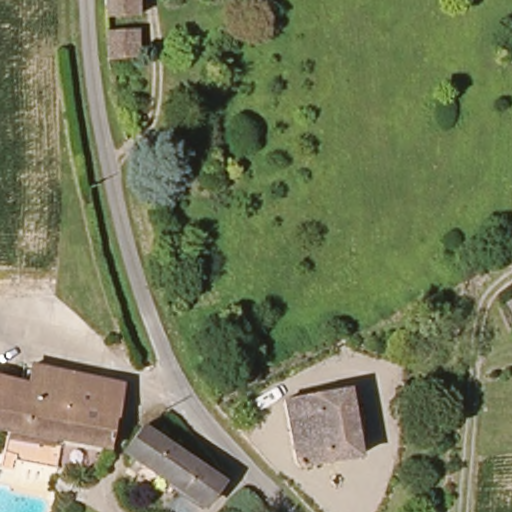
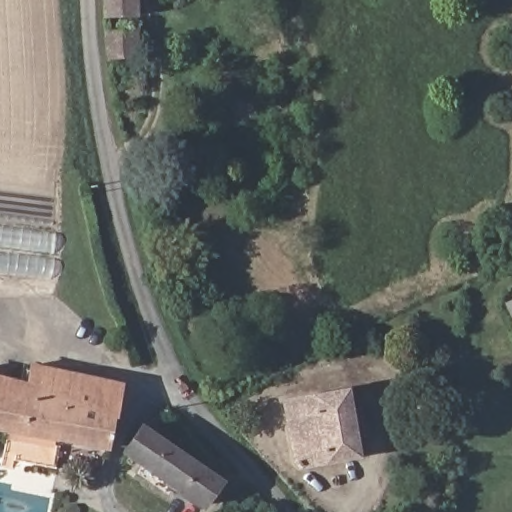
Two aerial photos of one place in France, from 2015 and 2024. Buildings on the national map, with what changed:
unchanged [(105,21),(103,0),(137,0),(138,19),(105,21)]
unchanged [(135,34),(136,60),(108,61),(106,35),(135,34)]
new [(0,273),(0,226),(56,234),(51,280),(0,273)]
unchanged [(506,305),(512,303),(512,318),(506,305)]
unchanged [(56,365),(125,378),(112,447),(64,439),(72,388),(30,379),(32,357),(56,365)]
unchanged [(64,439),(0,428),(0,372),(30,379),(72,388),(64,439)]
unchanged [(361,461),(299,471),(293,465),(289,447),(269,449),(261,406),(351,391),(361,461)]
unchanged [(209,511),(126,455),(145,426),(226,482),(209,511)]

